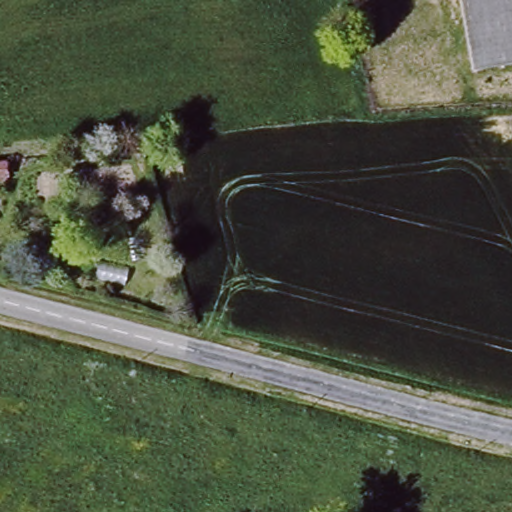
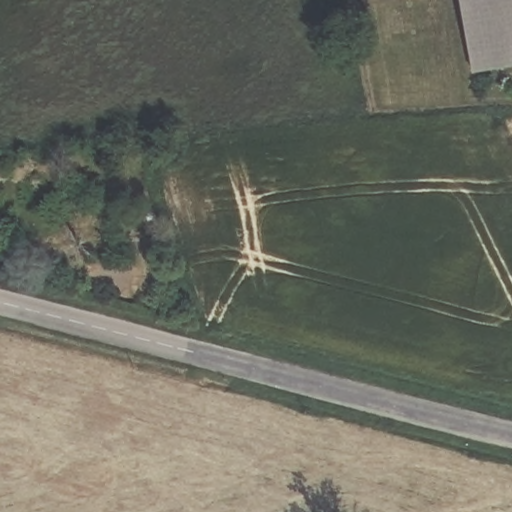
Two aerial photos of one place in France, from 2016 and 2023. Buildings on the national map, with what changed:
unchanged [(472,65),(461,0),(512,0),(512,59),(472,65)]
unchanged [(6,167),(0,167),(0,157),(5,157),(6,167)]

